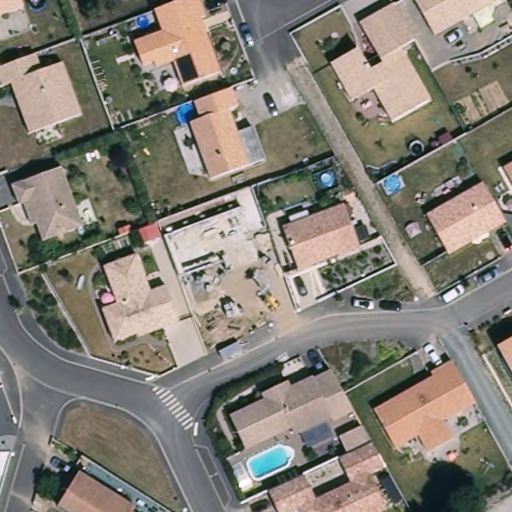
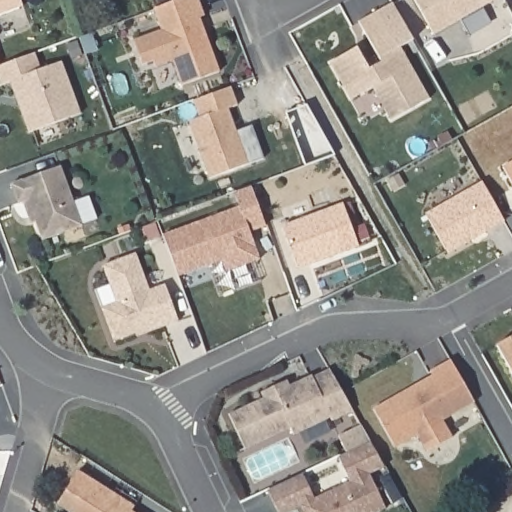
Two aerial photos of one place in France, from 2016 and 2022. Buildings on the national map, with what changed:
unchanged [(0,14),(0,0),(20,0),(22,7),(0,14)]
unchanged [(156,7),(174,0),(200,0),(221,69),(183,81),(174,59),(145,68),(135,40),(162,26),(156,7)]
unchanged [(362,44),(372,66),(382,60),(361,19),(392,0),(415,36),(405,44),(434,97),(393,120),(375,85),(351,96),(332,62),(362,44)]
unchanged [(417,0),(493,0),(433,30),(417,0)]
unchanged [(43,69),(64,59),(83,113),(30,131),(10,80),(2,84),(0,76),(0,64),(37,49),(43,69)]
unchanged [(238,105),(229,109),(249,163),(210,177),(190,120),(200,117),(194,100),(232,86),(238,105)]
unchanged [(512,157),(512,181),(502,162),(512,157)]
unchanged [(60,165),(87,223),(43,239),(10,183),(60,165)]
unchanged [(483,179),(509,222),(447,253),(427,212),(483,179)]
new [(239,207),(234,193),(251,187),(265,226),(249,232),(259,259),(225,272),(221,260),(177,277),(162,235),(239,207)]
unchanged [(345,200),(360,245),(297,269),(281,222),(345,200)]
unchanged [(139,253),(150,290),(167,281),(180,319),(115,340),(102,306),(116,300),(104,263),(139,253)]
unchanged [(512,333),(512,369),(496,342),(512,333)]
unchanged [(434,376),(430,369),(451,357),(478,399),(447,418),(454,438),(428,449),(420,433),(396,447),(376,404),(434,376)]
unchanged [(266,396),(262,390),(286,378),(290,384),(332,368),(355,411),(244,448),(229,412),(266,396)]
unchanged [(314,499),(350,481),(340,456),(345,452),(337,434),(362,424),(386,466),(369,476),(385,507),(375,512),(304,512),(302,508),(293,512),(279,512),(268,489),(303,474),(314,499)]
unchanged [(137,503),(134,509),(138,512),(73,512),(57,503),(79,469),(137,503)]

